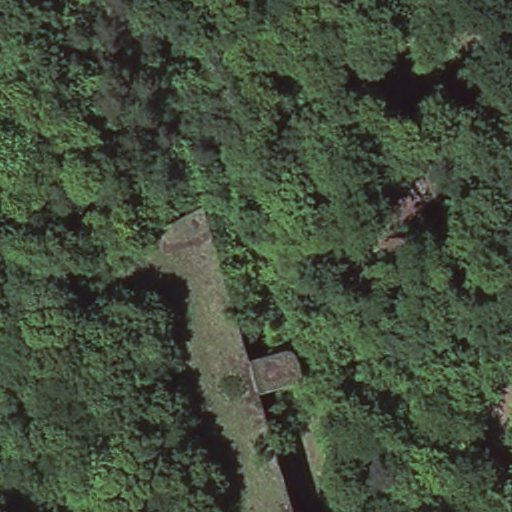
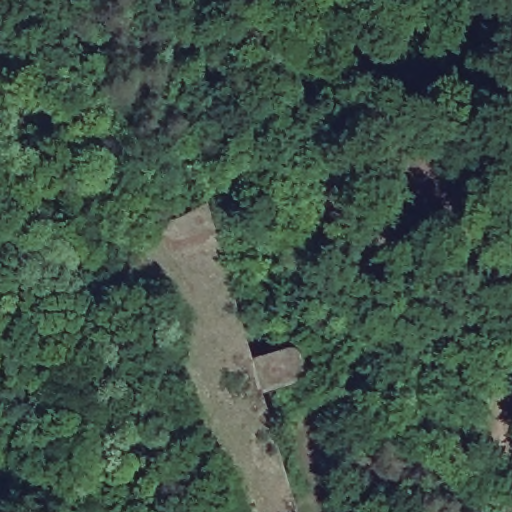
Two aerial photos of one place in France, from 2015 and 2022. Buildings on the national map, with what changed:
unchanged [(111,244),(140,241),(142,209),(160,204),(160,216),(203,203),(247,357),(293,344),(301,356),(308,377),(300,382),(260,392),(294,512),(141,512),(87,334),(74,220),(95,209),(111,244)]

